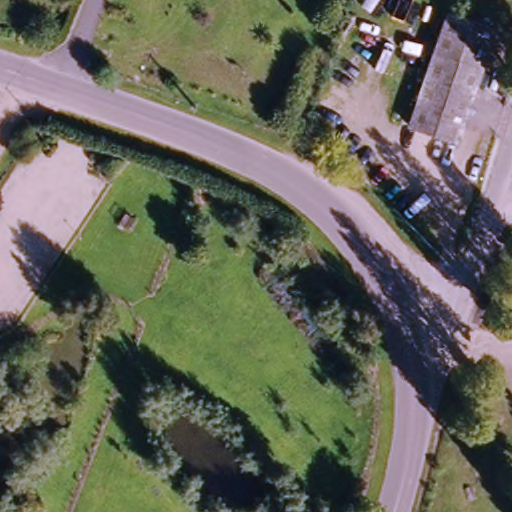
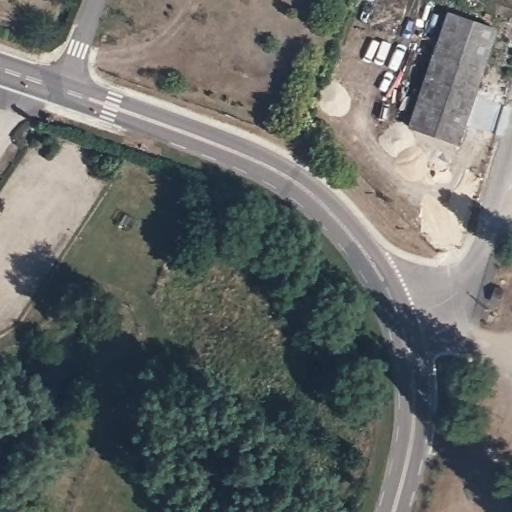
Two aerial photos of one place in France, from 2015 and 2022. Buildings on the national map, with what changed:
unchanged [(439,42),(450,14),(498,30),(482,78),(433,63),(439,42)]
unchanged [(410,133),(415,121),(428,79),(433,63),(482,78),(463,137),(460,148),(410,133)]

